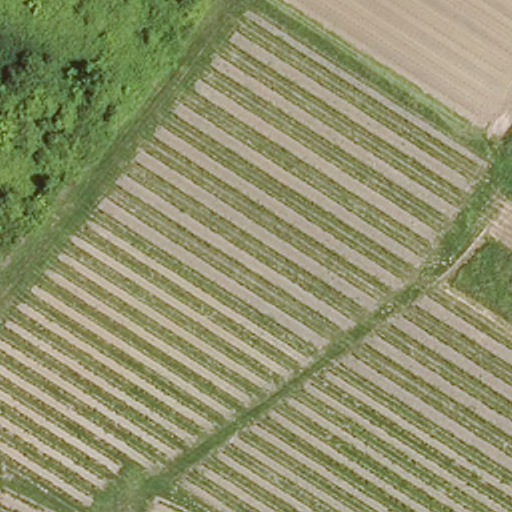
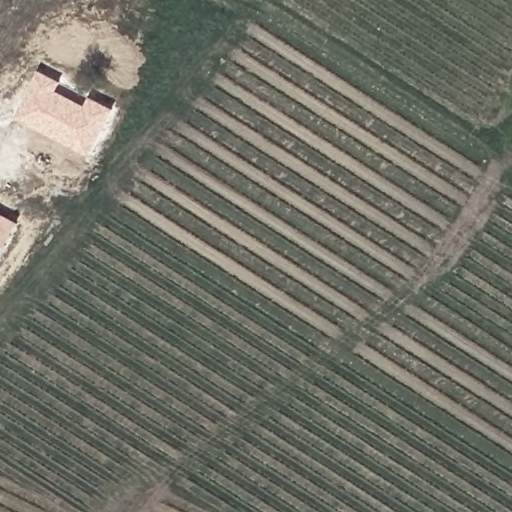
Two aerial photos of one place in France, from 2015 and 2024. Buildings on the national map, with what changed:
new [(92,155),(18,119),(40,70),(64,82),(59,91),(88,106),(93,96),(116,109),(92,155)]
new [(21,222),(0,265),(0,212),(21,222)]

